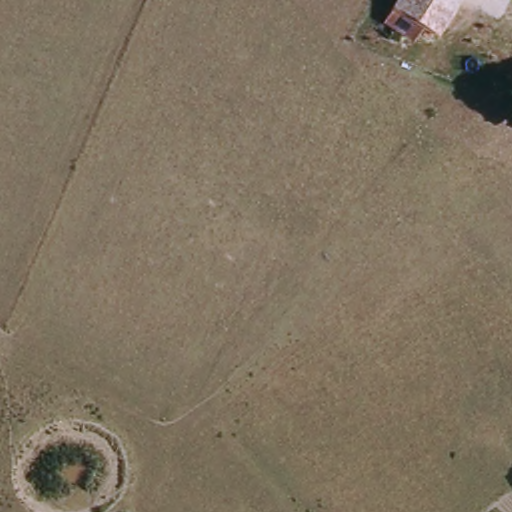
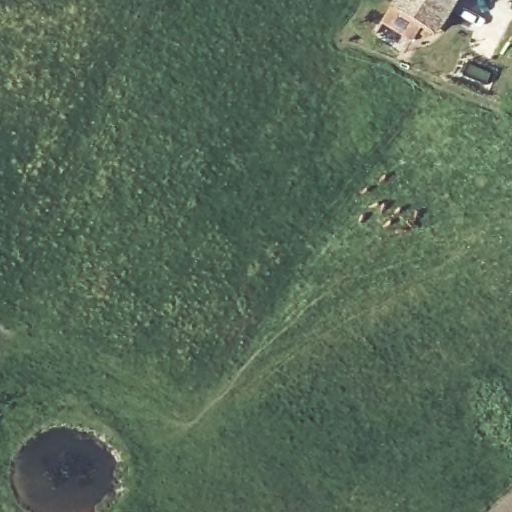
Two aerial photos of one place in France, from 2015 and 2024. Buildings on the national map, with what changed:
unchanged [(438,33),(420,24),(410,40),(382,22),(397,0),(459,0),(438,33)]

